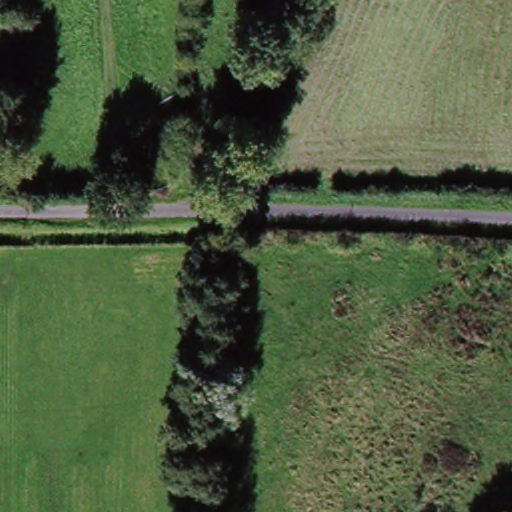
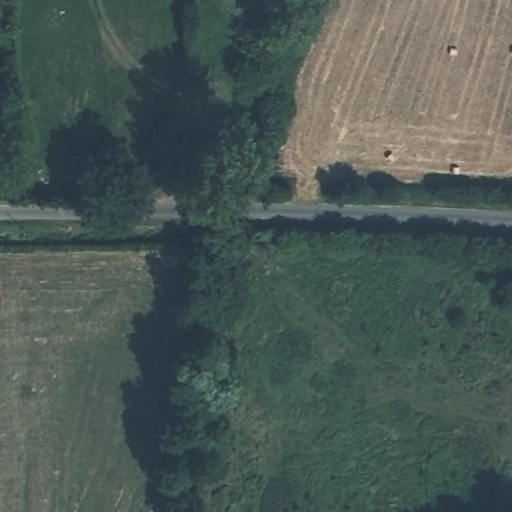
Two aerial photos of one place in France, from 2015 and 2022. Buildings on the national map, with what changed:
[]

